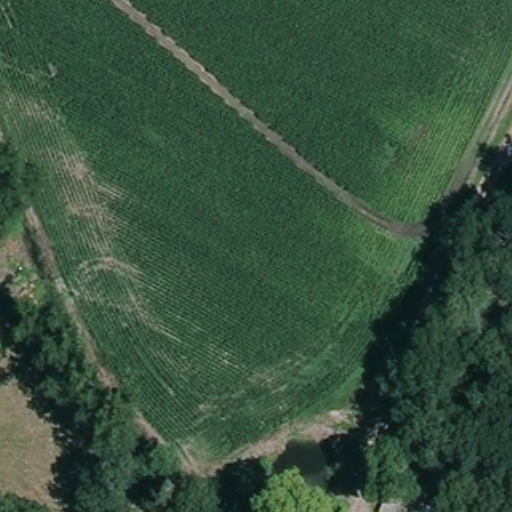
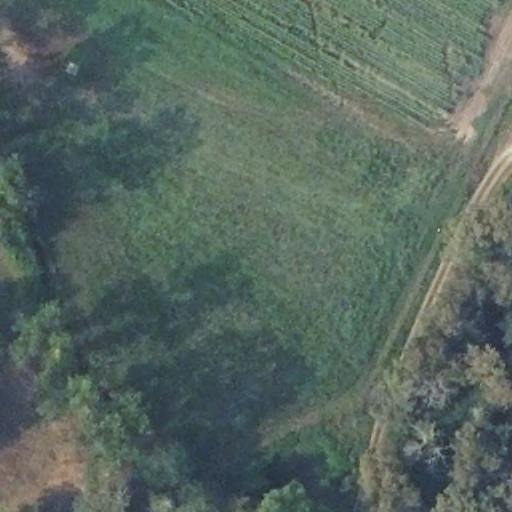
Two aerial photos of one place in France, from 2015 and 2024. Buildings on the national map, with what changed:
unchanged [(433,511),(432,512),(383,512),(389,495),(433,511)]

